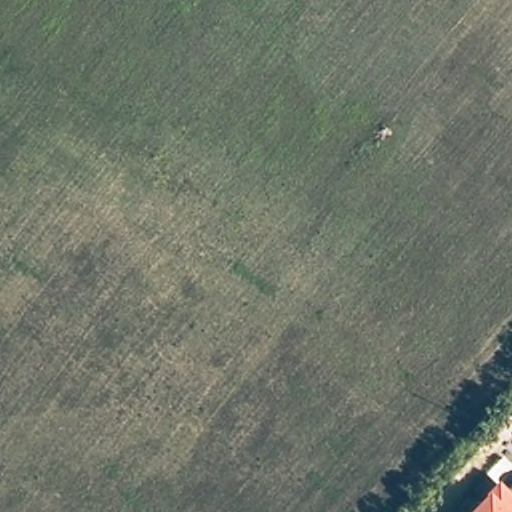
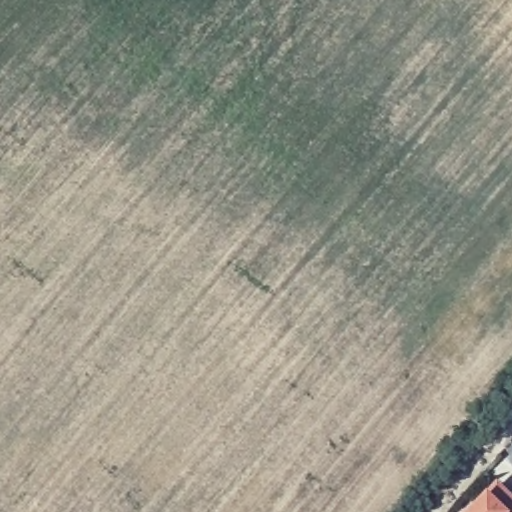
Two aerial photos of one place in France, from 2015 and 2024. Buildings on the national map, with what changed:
unchanged [(512,497),(512,512),(465,512),(494,481),(512,497)]

